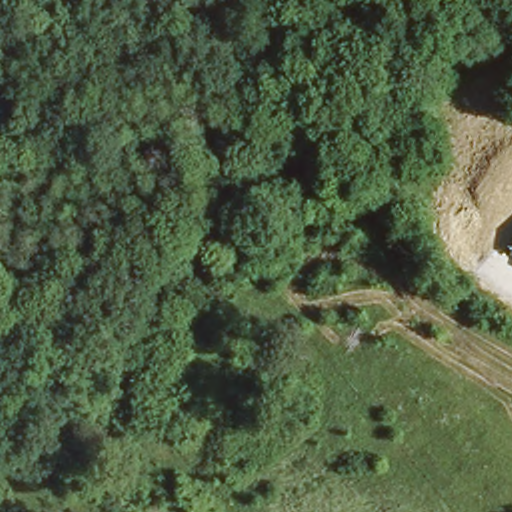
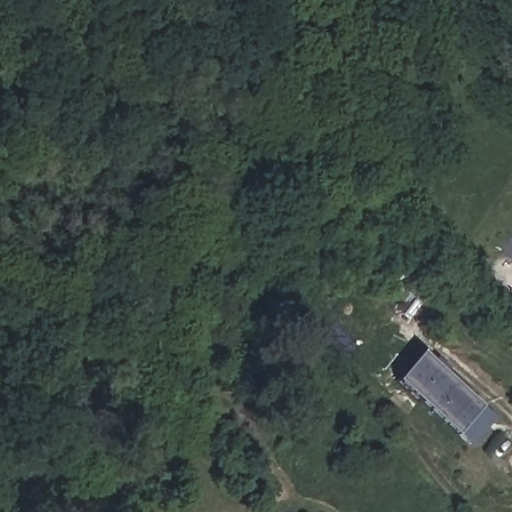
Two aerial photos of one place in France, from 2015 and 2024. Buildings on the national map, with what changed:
unchanged [(508,253),(512,246),(512,255),(508,253)]
new [(470,446),(395,381),(421,353),(495,418),(470,446)]

